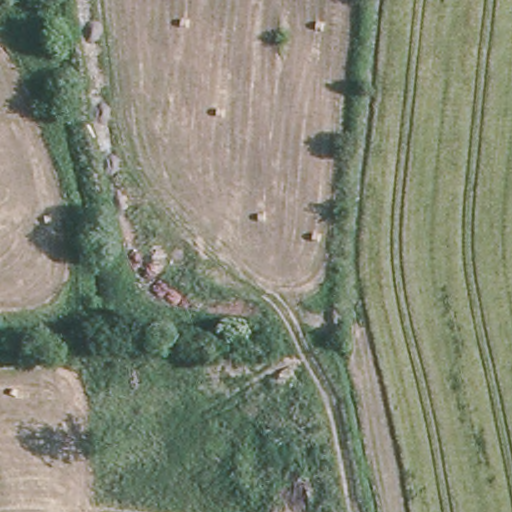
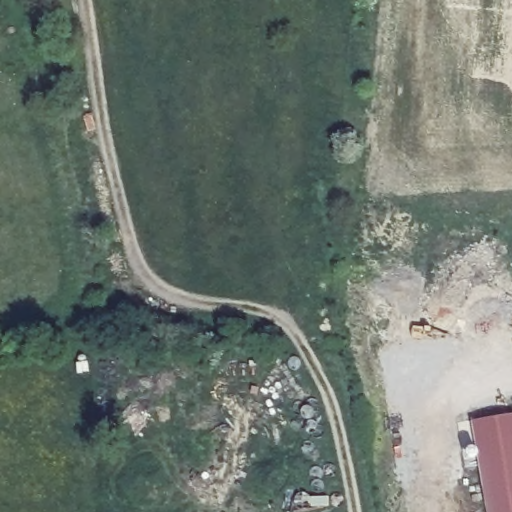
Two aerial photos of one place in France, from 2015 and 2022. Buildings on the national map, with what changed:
new [(485,512),(469,421),(512,414),(512,512),(485,512)]

